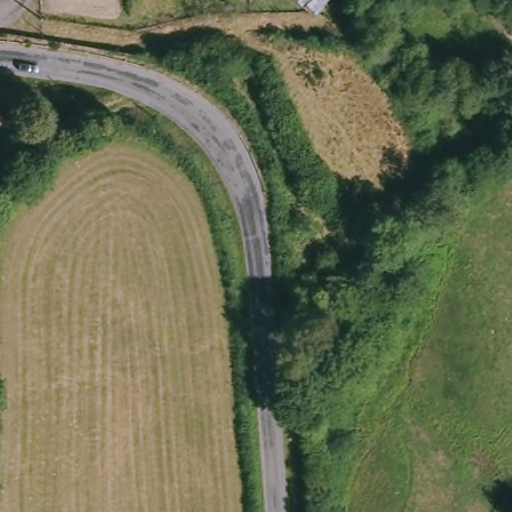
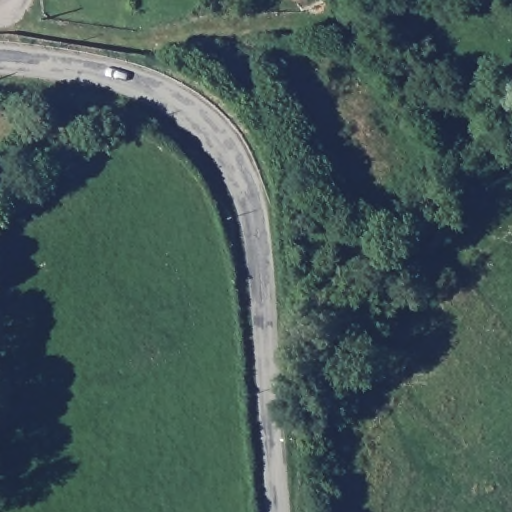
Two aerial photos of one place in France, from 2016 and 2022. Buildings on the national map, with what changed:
unchanged [(321,19),(298,0),(337,0),(321,19)]

